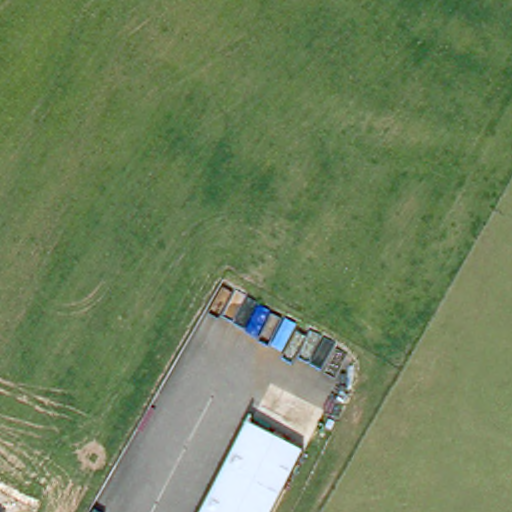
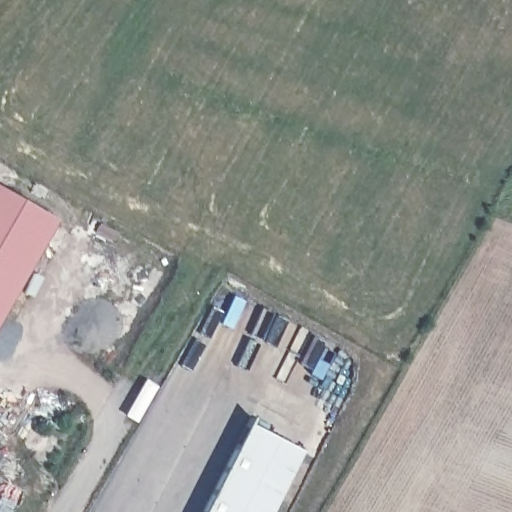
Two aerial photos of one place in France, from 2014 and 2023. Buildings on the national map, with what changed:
new [(0,317),(0,189),(56,220),(0,317)]
unchanged [(304,449),(272,512),(202,512),(248,422),(304,449)]

